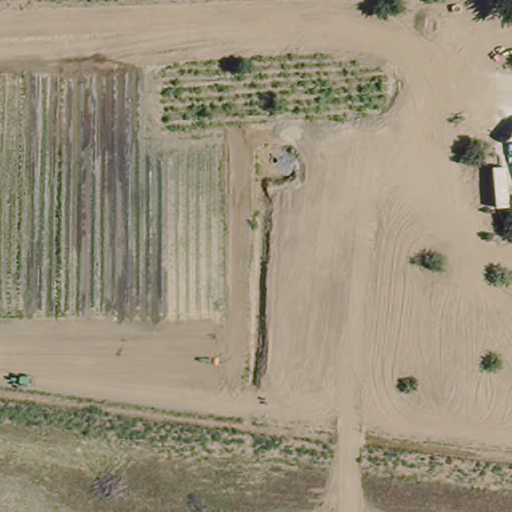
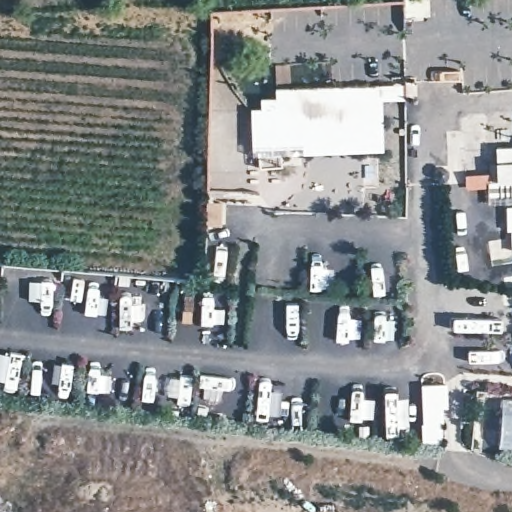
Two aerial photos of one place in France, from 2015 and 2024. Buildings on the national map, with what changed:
new [(402,83),(403,100),(382,101),(383,150),(250,154),(248,108),(256,107),(255,97),(272,96),(272,91),(402,83)]
unchanged [(498,183),(497,149),(512,148),(512,198),(498,198),(498,183)]

